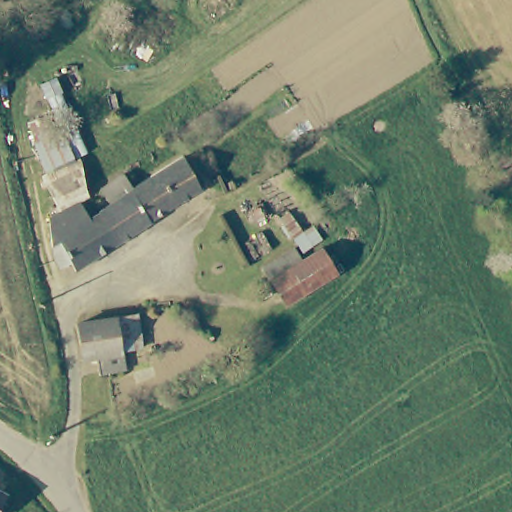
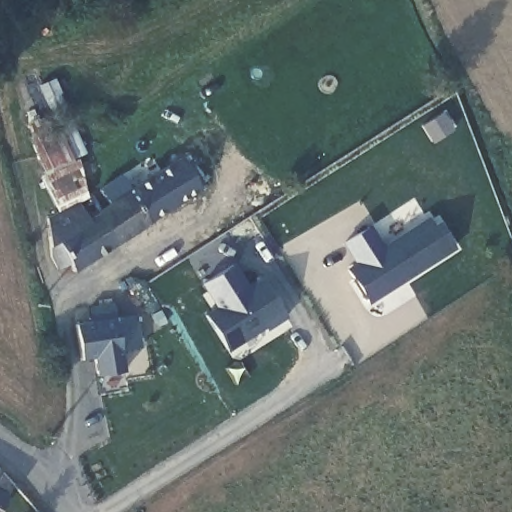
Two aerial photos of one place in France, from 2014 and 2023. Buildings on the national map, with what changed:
unchanged [(190,158),(205,187),(192,196),(152,222),(134,194),(174,168),(190,158)]
unchanged [(79,160),(89,195),(82,201),(91,221),(52,245),(44,227),(59,217),(42,179),(79,160)]
unchanged [(134,194),(152,222),(155,227),(124,247),(102,213),(134,194)]
unchanged [(91,221),(102,213),(124,247),(67,285),(52,246),(91,221)]
new [(368,305),(345,267),(353,262),(342,242),(370,224),(382,243),(427,216),(433,224),(438,221),(455,249),(368,305)]
new [(267,332),(265,328),(230,351),(203,312),(213,306),(200,284),(234,263),(248,285),(261,277),(288,317),(267,332)]
unchanged [(76,324),(138,312),(140,339),(123,347),(122,361),(95,367),(95,356),(81,357),(76,324)]
unchanged [(5,493),(0,505),(0,490),(5,493)]

